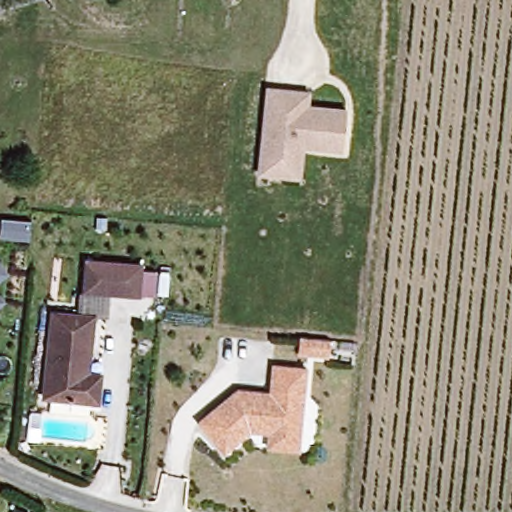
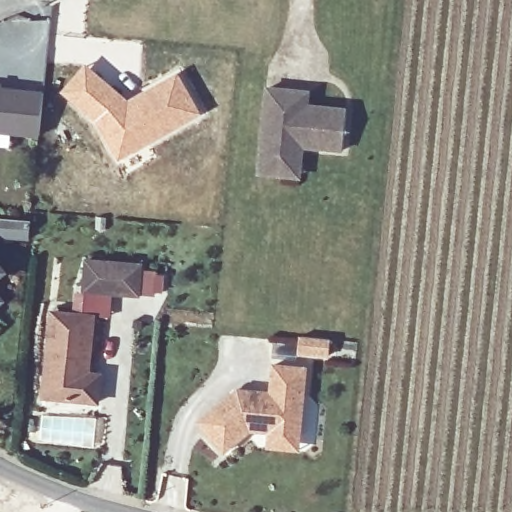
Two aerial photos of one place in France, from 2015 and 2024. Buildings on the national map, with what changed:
new [(85,63),(129,98),(178,72),(203,113),(117,162),(91,121),(60,91),(85,63)]
unchanged [(280,176),(256,173),(267,89),(289,91),(308,93),(306,106),(347,111),(342,151),(301,147),(297,178),(280,176)]
new [(41,137),(16,134),(14,149),(0,148),(0,90),(47,95),(41,137)]
unchanged [(42,243),(14,239),(16,221),(45,225),(42,243)]
unchanged [(143,294),(85,286),(89,257),(145,265),(143,294)]
unchanged [(0,273),(0,264),(4,269),(0,273)]
unchanged [(0,301),(0,297),(2,299),(0,301)]
unchanged [(96,400),(74,398),(44,394),(54,315),(96,319),(89,373),(99,374),(96,400)]
unchanged [(323,353),(292,349),(294,334),(325,337),(323,353)]
unchanged [(259,444),(262,430),(242,427),(216,449),(189,419),(229,386),(254,389),(264,390),(264,380),(267,362),(300,366),(293,433),(291,448),(259,444)]

